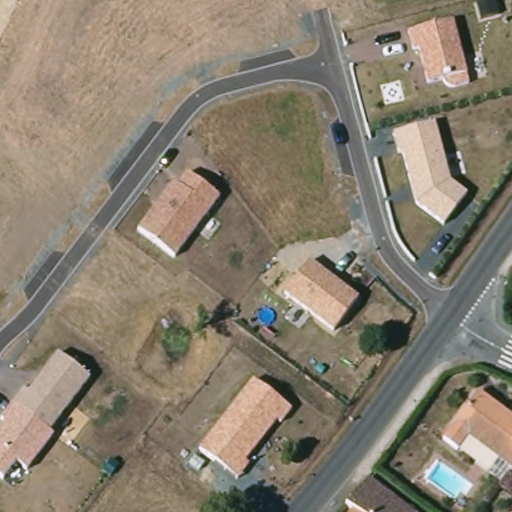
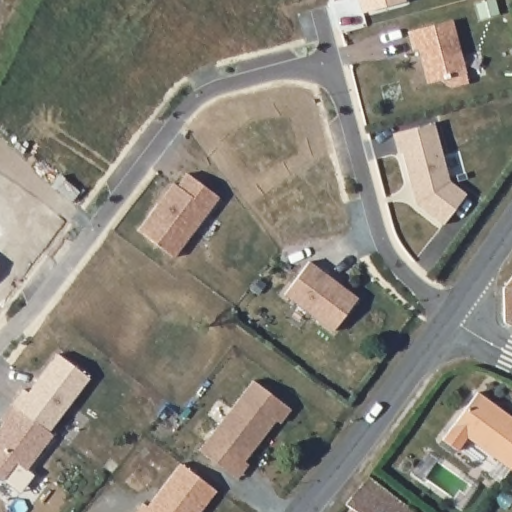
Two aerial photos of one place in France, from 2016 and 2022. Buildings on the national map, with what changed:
new [(418,1),(374,13),(371,0),(418,0),(418,1)]
unchanged [(469,82),(451,86),(446,82),(444,79),(425,82),(418,49),(412,50),(408,31),(452,19),(469,82)]
unchanged [(434,122),(450,180),(468,193),(445,226),(415,203),(401,152),(397,152),(393,134),(434,122)]
unchanged [(177,185),(187,172),(219,196),(174,258),(137,230),(172,182),(177,185)]
unchanged [(282,293),(307,259),(358,298),(332,332),(282,293)]
unchanged [(50,432),(53,435),(27,471),(16,463),(2,480),(0,478),(0,428),(5,421),(0,419),(0,418),(23,387),(29,391),(58,354),(90,378),(50,432)]
unchanged [(291,409),(280,424),(275,421),(243,462),(248,466),(237,480),(200,451),(253,382),(291,409)]
unchanged [(480,399),(512,421),(512,474),(471,444),(461,458),(445,446),(480,399)]
new [(151,507),(186,466),(220,494),(206,512),(141,512),(147,504),(151,507)]
unchanged [(419,512),(351,512),(353,508),(345,502),(369,474),(419,512)]

